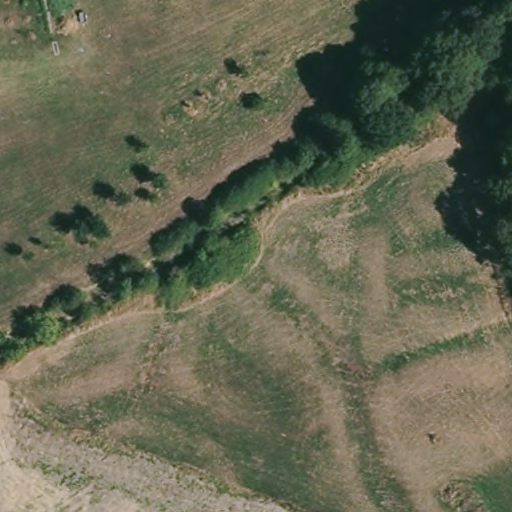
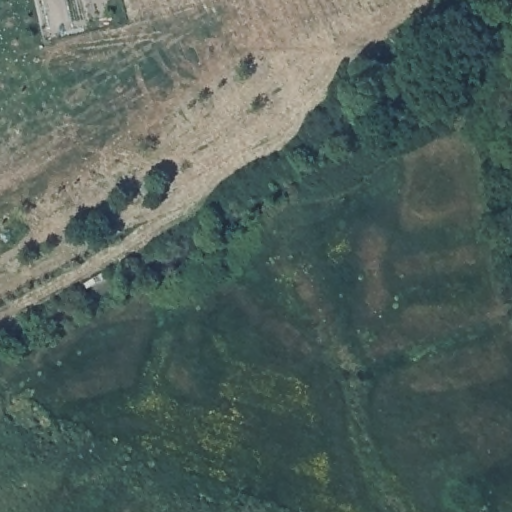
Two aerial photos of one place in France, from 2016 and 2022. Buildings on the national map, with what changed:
[]

